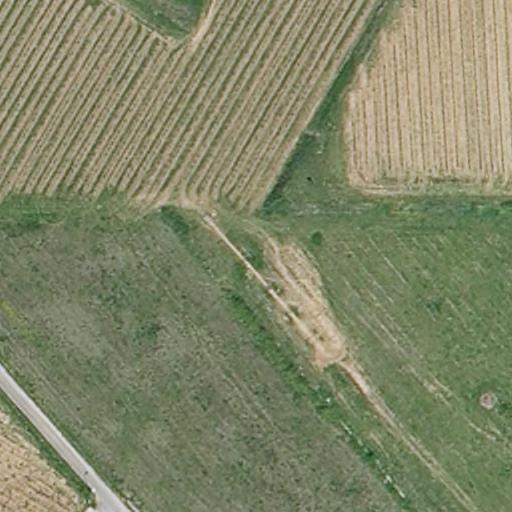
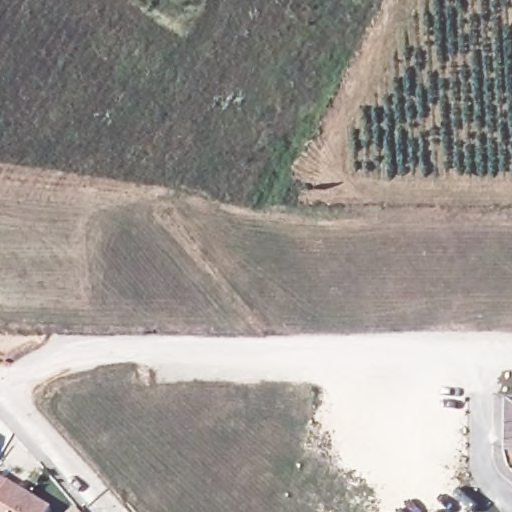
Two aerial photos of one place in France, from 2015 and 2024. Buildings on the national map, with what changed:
new [(0,480),(3,482),(0,489),(0,480)]
new [(0,512),(0,489),(3,482),(50,509),(48,512),(0,512)]

